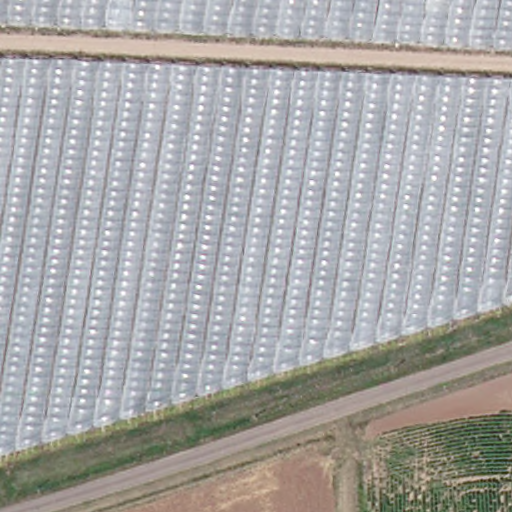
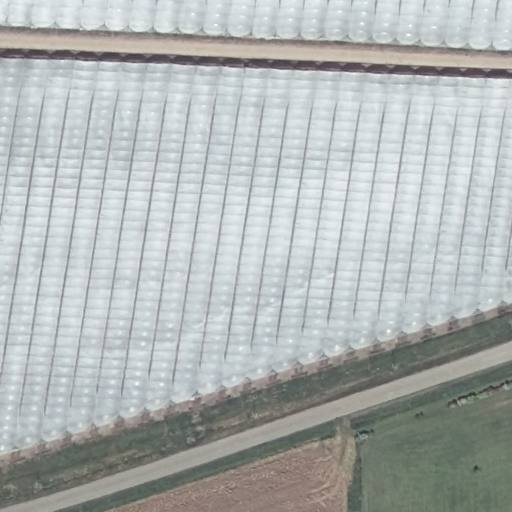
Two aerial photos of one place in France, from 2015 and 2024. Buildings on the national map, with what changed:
unchanged [(0,25),(0,0),(512,0),(512,49),(0,25)]
unchanged [(0,456),(0,56),(512,77),(512,303),(0,456)]

